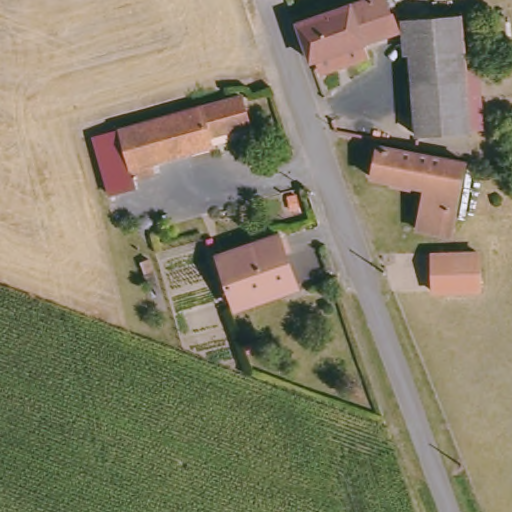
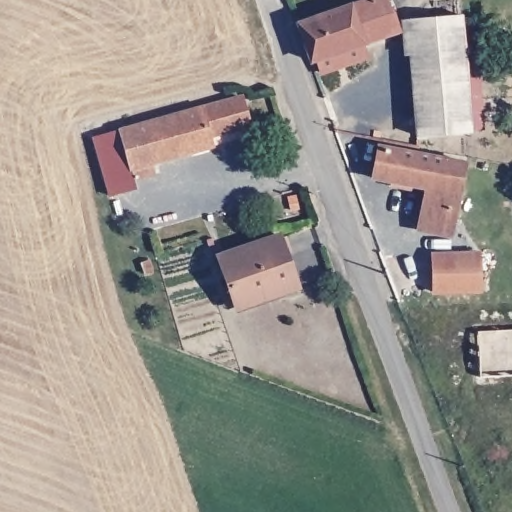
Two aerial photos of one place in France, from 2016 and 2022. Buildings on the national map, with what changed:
unchanged [(382,0),(399,31),(311,60),(298,24),(367,0),(382,0)]
unchanged [(484,131),(471,132),(417,135),(408,19),(462,16),(466,64),(479,63),(484,131)]
unchanged [(244,96),(253,127),(209,139),(202,108),(244,96)]
unchanged [(135,180),(132,169),(135,180),(136,189),(109,196),(94,138),(122,131),(202,108),(209,139),(211,146),(151,163),(155,174),(135,180)]
unchanged [(470,158),(455,232),(421,226),(428,184),(376,173),(381,141),(470,158)]
unchanged [(279,235),(297,288),(235,308),(218,256),(279,235)]
unchanged [(479,254),(480,291),(433,293),(432,256),(479,254)]
new [(481,376),(478,332),(512,330),(512,375),(481,376)]

